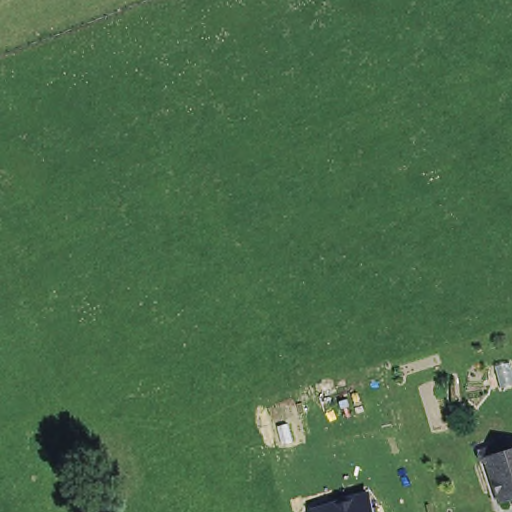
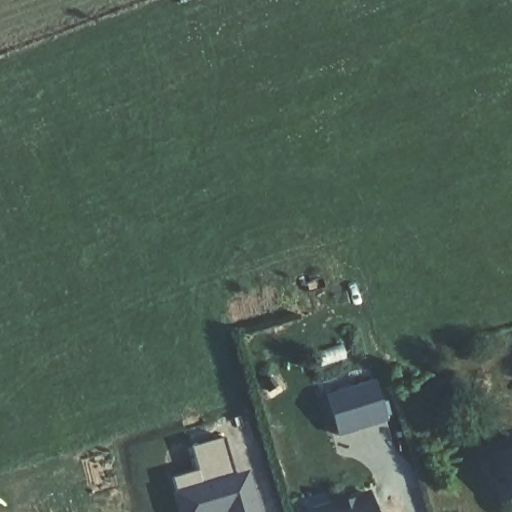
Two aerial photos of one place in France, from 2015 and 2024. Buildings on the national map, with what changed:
new [(338,437),(324,396),(374,382),(387,422),(338,437)]
new [(222,437),(233,473),(200,483),(196,470),(189,447),(222,437)]
unchanged [(476,451),(494,445),(496,451),(512,446),(512,500),(499,504),(488,463),(481,465),(476,451)]
new [(196,470),(200,483),(233,473),(250,468),(262,512),(178,512),(168,477),(196,470)]
unchanged [(310,509),(369,491),(376,512),(310,512),(309,510),(310,509)]

